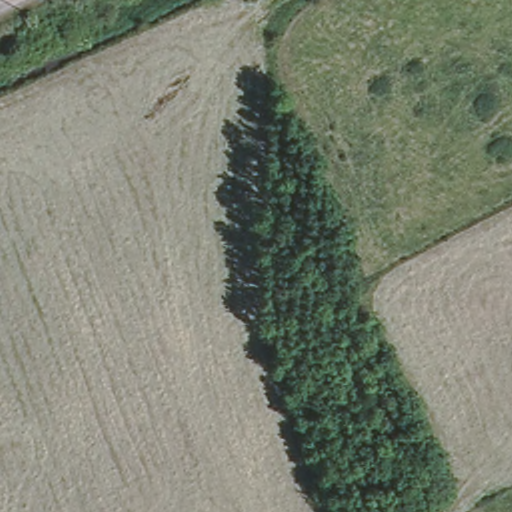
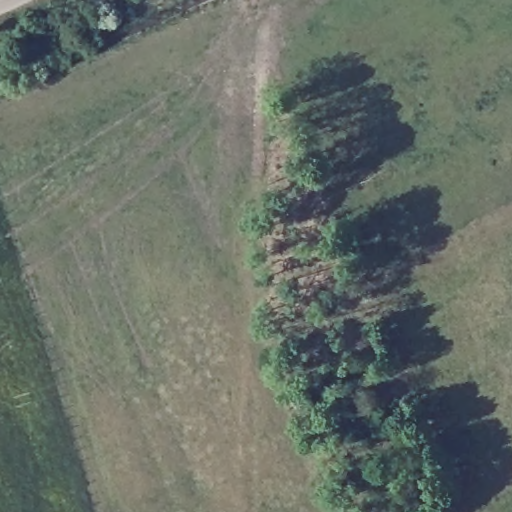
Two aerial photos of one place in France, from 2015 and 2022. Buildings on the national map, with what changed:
[]

